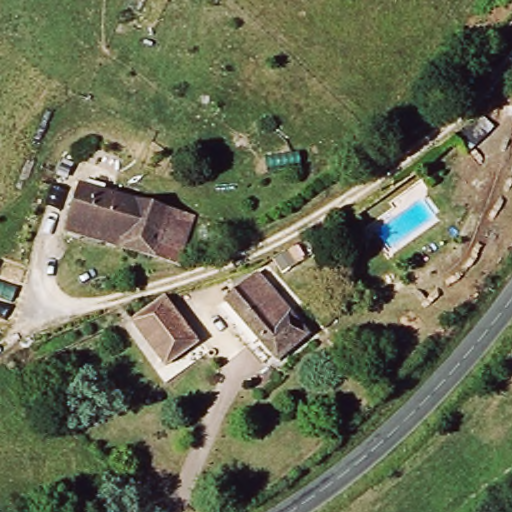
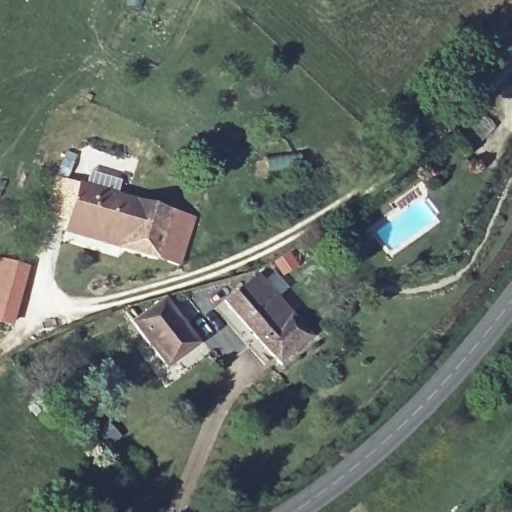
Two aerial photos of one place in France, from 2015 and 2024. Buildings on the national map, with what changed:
unchanged [(440,161),(445,167),(437,173),(432,167),(440,161)]
unchanged [(68,225),(79,188),(192,223),(190,224),(174,272),(120,254),(63,238),(68,225)]
new [(28,267),(11,327),(0,324),(0,260),(28,267)]
unchanged [(228,303),(257,279),(310,342),(280,367),(228,303)]
unchanged [(167,372),(130,326),(161,300),(197,349),(167,372)]

